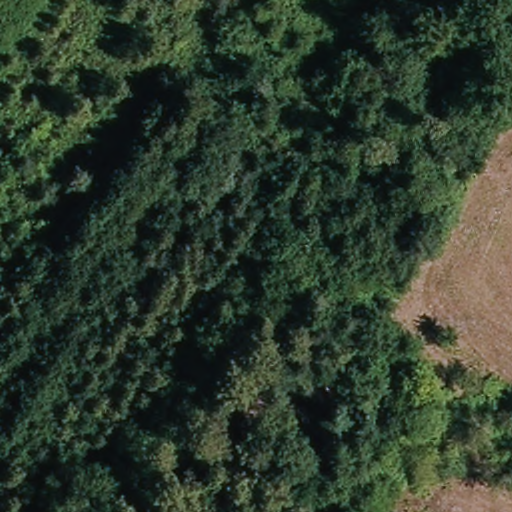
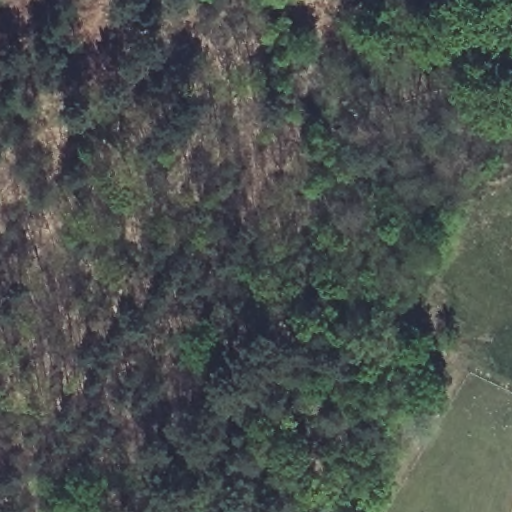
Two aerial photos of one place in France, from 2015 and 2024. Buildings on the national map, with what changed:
[]

